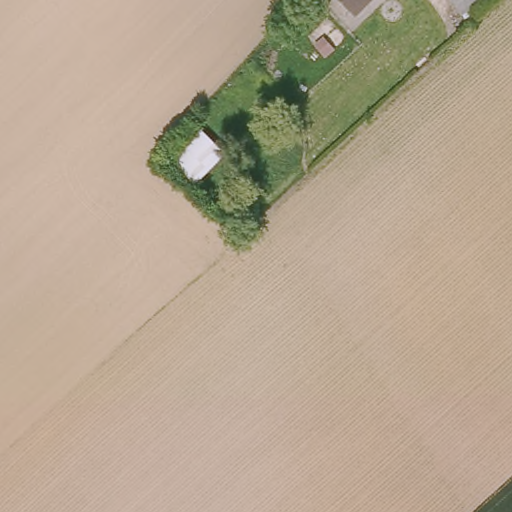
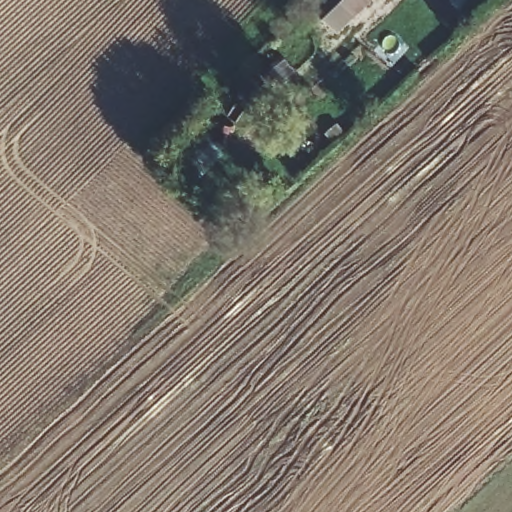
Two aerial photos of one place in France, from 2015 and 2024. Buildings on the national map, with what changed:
unchanged [(344,0),(371,0),(358,13),(344,0)]
unchanged [(455,0),(486,0),(465,16),(455,0)]

